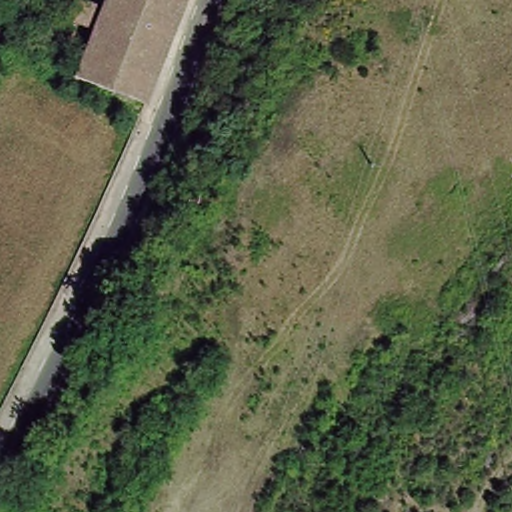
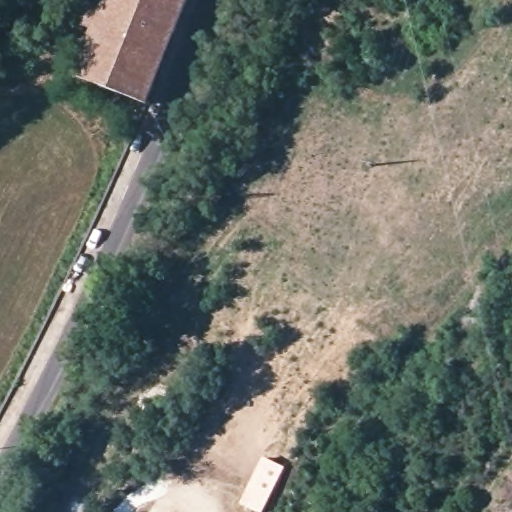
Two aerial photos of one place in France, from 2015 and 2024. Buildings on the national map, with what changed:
unchanged [(148,107),(72,83),(88,33),(63,26),(72,0),(74,0),(100,8),(103,0),(192,0),(148,107)]
new [(264,512),(257,512),(240,504),(263,457),(286,467),(264,512)]

